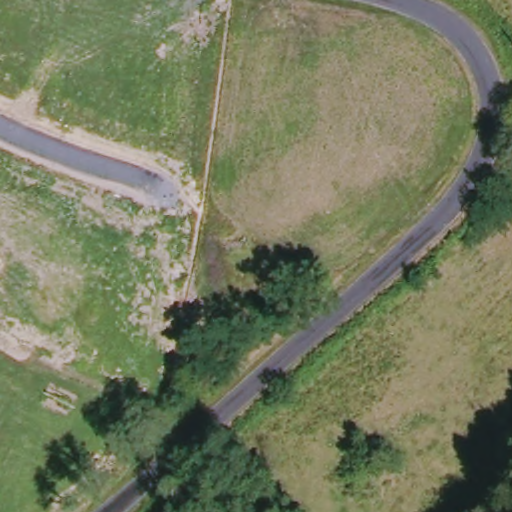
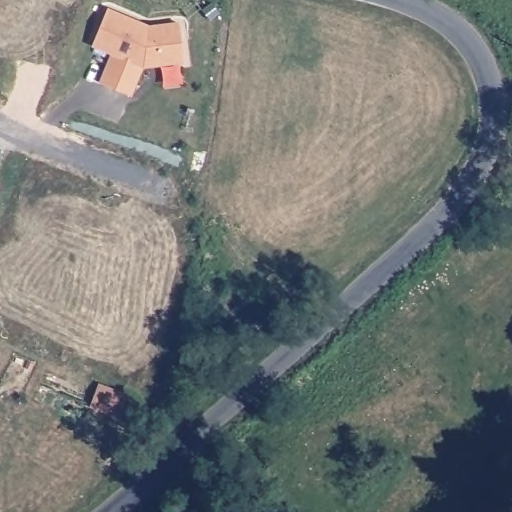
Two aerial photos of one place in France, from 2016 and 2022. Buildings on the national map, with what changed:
new [(100,84),(111,54),(92,46),(108,8),(150,25),(180,22),(184,62),(143,65),(131,96),(100,84)]

